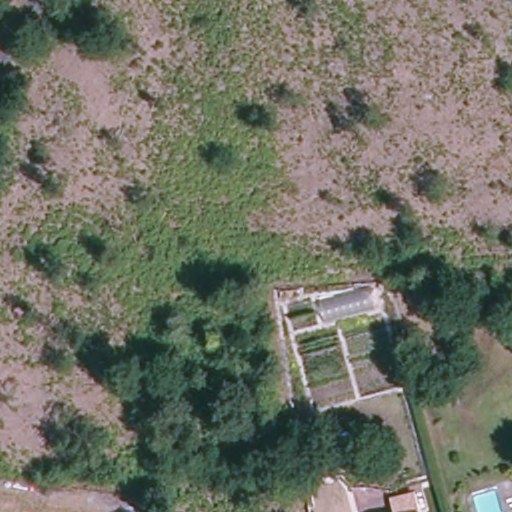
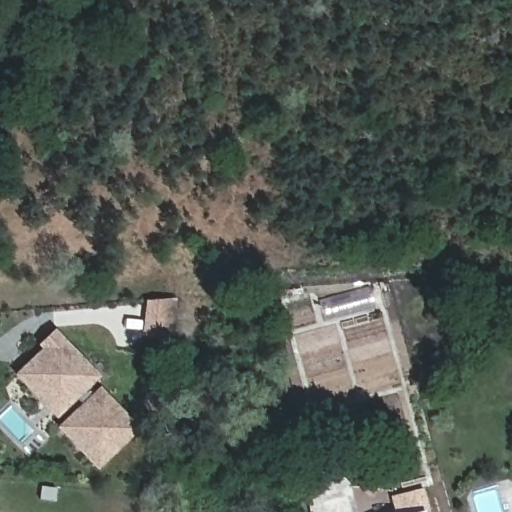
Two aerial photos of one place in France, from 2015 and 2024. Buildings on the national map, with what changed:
new [(36,345),(53,330),(98,377),(55,419),(13,374),(39,349),(36,345)]
new [(96,469),(55,428),(99,387),(139,429),(96,469)]
unchanged [(413,496),(417,512),(391,512),(389,503),(413,496)]

